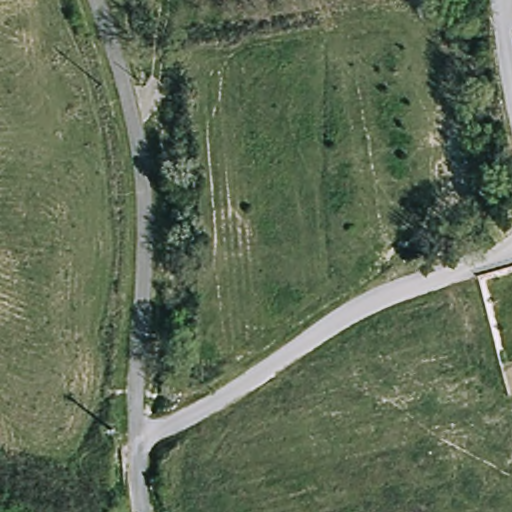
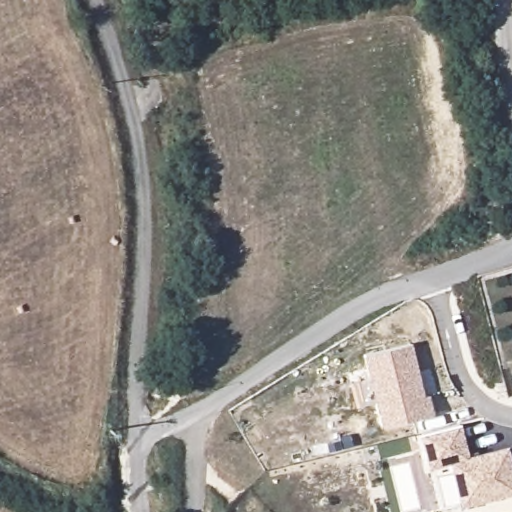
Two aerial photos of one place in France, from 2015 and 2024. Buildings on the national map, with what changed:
new [(429,393),(434,413),(381,426),(363,354),(410,342),(423,395),(429,393)]
new [(459,507),(457,501),(443,505),(435,473),(450,470),(447,462),(427,467),(418,434),(460,424),(468,455),(507,445),(512,467),(512,494),(459,507)]

